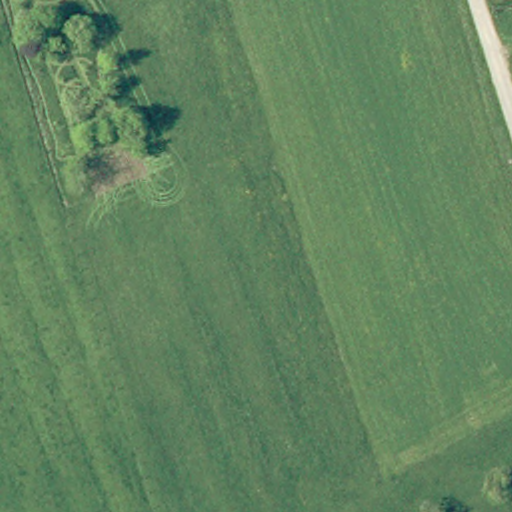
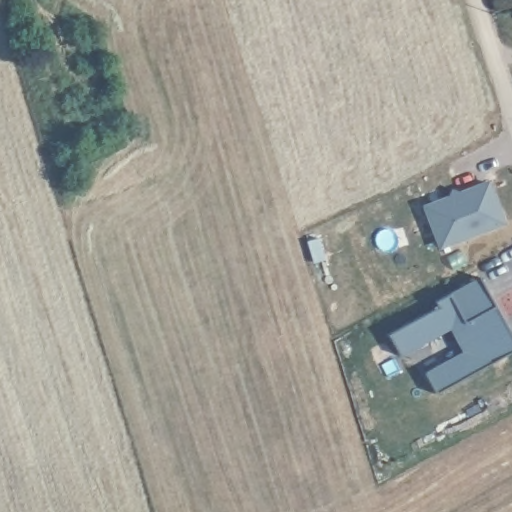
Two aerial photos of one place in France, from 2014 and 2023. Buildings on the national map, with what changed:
new [(422,204),(489,178),(505,222),(440,249),(422,204)]
new [(318,237),(325,259),(315,262),(307,241),(318,237)]
new [(512,351),(437,393),(425,371),(462,350),(450,329),(400,358),(389,335),(437,307),(434,301),(479,275),(512,335),(512,351)]

